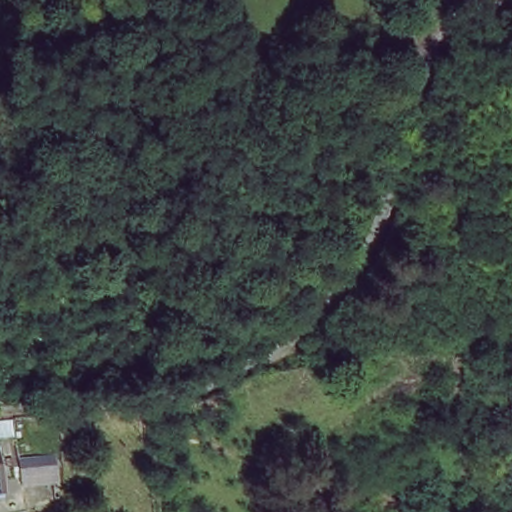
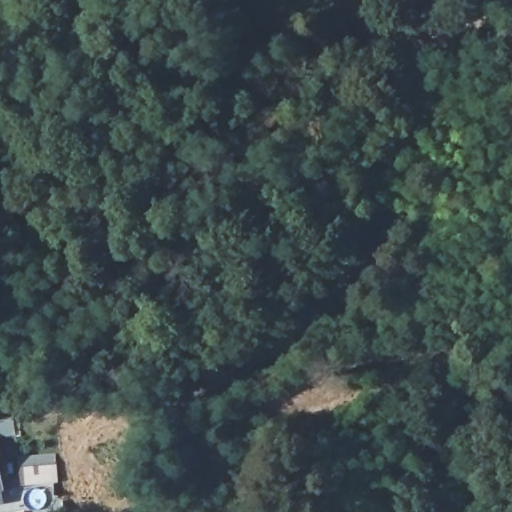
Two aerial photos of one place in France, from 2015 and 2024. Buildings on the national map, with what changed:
unchanged [(0,488),(0,467),(2,480),(3,487),(0,488)]

